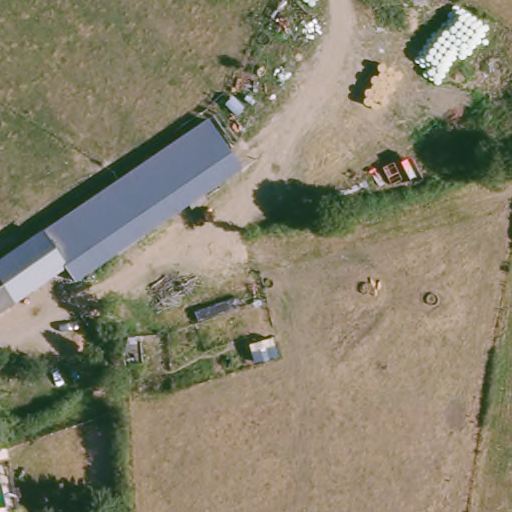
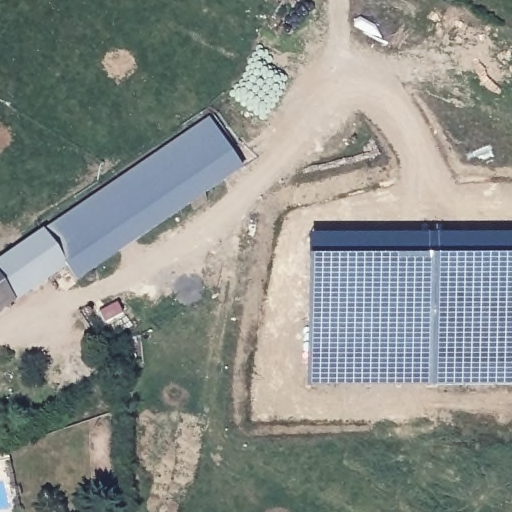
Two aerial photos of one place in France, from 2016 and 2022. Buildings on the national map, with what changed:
unchanged [(74,269),(51,234),(100,199),(214,119),(238,154),(90,258),(74,269)]
new [(512,383),(310,383),(310,233),(512,233),(512,383)]
unchanged [(0,321),(0,270),(51,234),(74,269),(0,321)]

